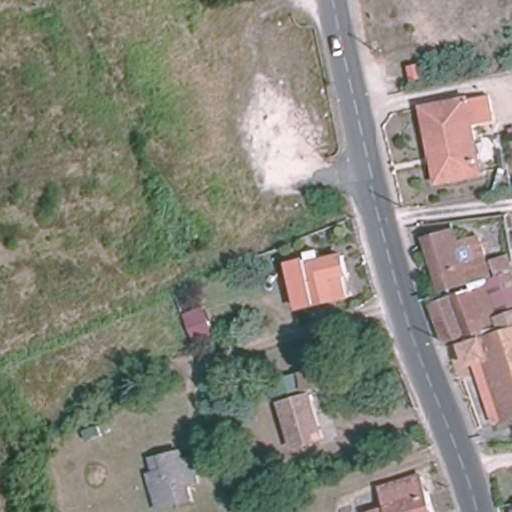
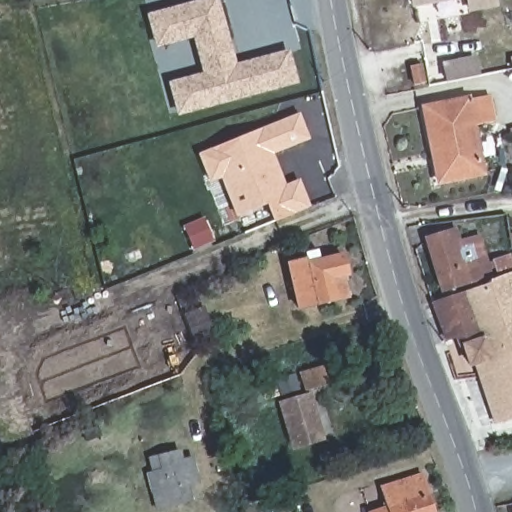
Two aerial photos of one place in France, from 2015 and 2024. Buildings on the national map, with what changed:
new [(191,39),(155,48),(146,14),(201,0),(221,0),(237,63),(290,48),(300,83),(177,117),(168,82),(200,72),(191,39)]
new [(412,0),(458,0),(412,6),(412,0)]
new [(471,12),(468,0),(497,0),(498,8),(471,12)]
unchanged [(423,64),(427,84),(415,86),(412,66),(423,64)]
unchanged [(494,123),(472,127),(481,174),(441,182),(426,108),(488,96),(494,123)]
new [(237,218),(221,180),(209,185),(197,154),(300,111),(311,138),(274,154),(285,185),(299,179),(310,206),(275,222),(267,205),(237,218)]
unchanged [(454,249),(474,242),(482,265),(473,268),(477,283),(436,295),(420,245),(450,236),(454,249)]
unchanged [(307,257),(308,263),(340,256),(349,295),(299,306),(289,260),(307,257)]
unchanged [(492,271),(506,267),(509,275),(512,284),(512,295),(501,298),(507,315),(512,315),(512,421),(498,425),(478,368),(464,372),(453,345),(441,348),(428,308),(495,281),(492,271)]
unchanged [(181,313),(201,306),(211,332),(191,339),(181,313)]
unchanged [(326,370),(330,383),(310,389),(306,375),(326,370)]
unchanged [(326,440),(300,448),(286,403),(312,395),(326,440)]
unchanged [(177,459),(186,457),(193,485),(183,488),(186,501),(152,510),(142,472),(147,471),(143,458),(152,456),(175,450),(177,459)]
unchanged [(377,507),(385,504),(380,488),(421,473),(435,512),(379,512),(377,507)]

